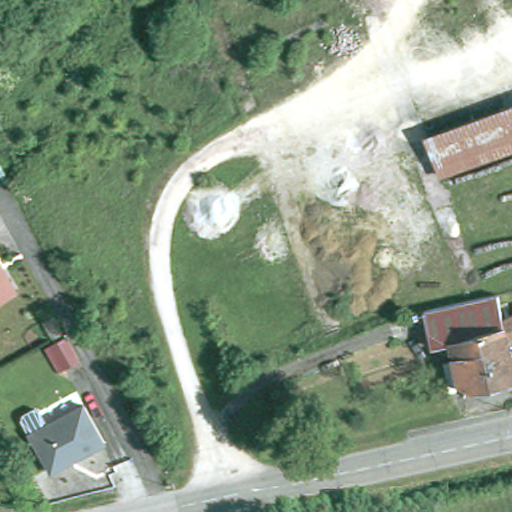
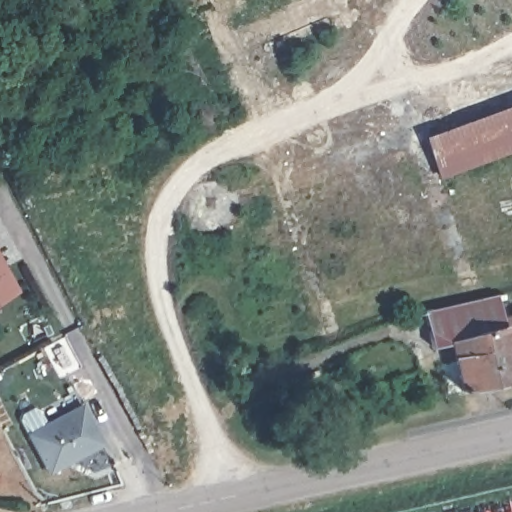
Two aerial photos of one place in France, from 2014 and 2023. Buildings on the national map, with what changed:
unchanged [(434,138),(512,112),(512,146),(444,168),(434,138)]
unchanged [(19,289),(0,301),(0,253),(19,289)]
unchanged [(469,315),(512,306),(512,334),(484,347),(482,348),(474,352),(471,353),(452,358),(443,321),(469,315)]
unchanged [(469,354),(471,353),(474,352),(482,348),(484,347),(512,334),(512,387),(471,397),(469,354)]
unchanged [(65,342),(78,365),(62,373),(49,350),(65,342)]
unchanged [(46,474),(28,440),(82,410),(104,450),(73,467),(49,480),(46,474)]

